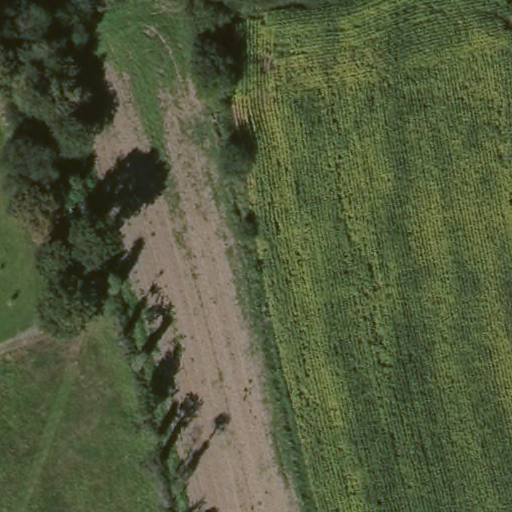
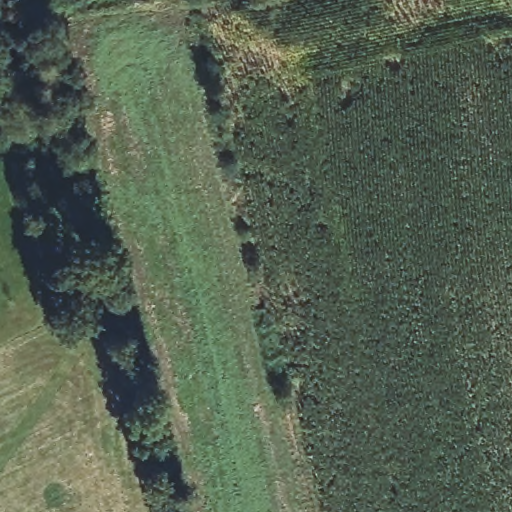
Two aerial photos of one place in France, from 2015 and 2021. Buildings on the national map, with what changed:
[]

